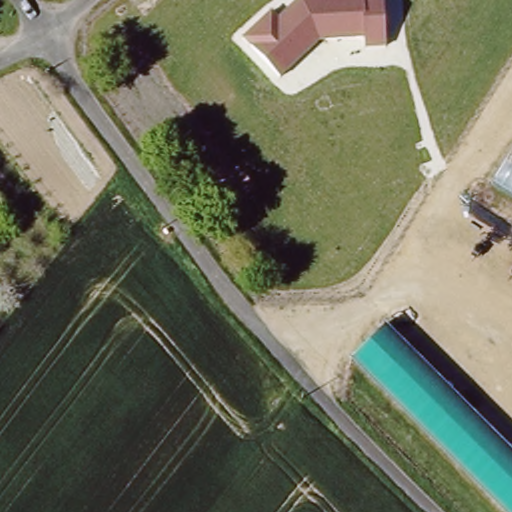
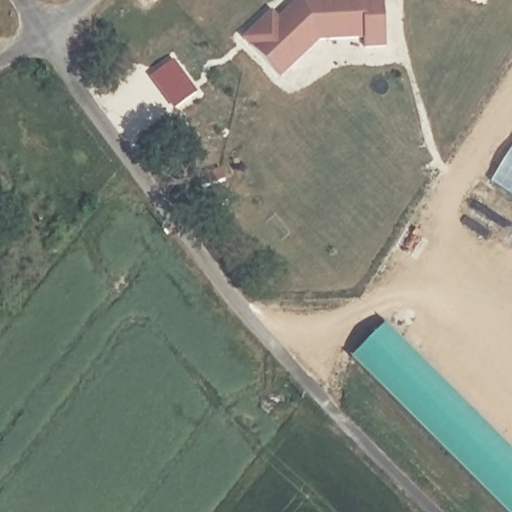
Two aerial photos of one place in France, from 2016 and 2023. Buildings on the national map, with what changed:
unchanged [(271,10),(279,18),(299,0),(383,0),(387,47),(364,49),(364,39),(319,41),(281,78),(241,38),(271,10)]
new [(173,58),(198,90),(178,105),(153,73),(173,58)]
unchanged [(512,197),(492,184),(512,149),(512,197)]
new [(201,186),(197,177),(219,167),(223,177),(201,186)]
unchanged [(512,451),(512,512),(506,512),(351,358),(384,323),(512,451)]

